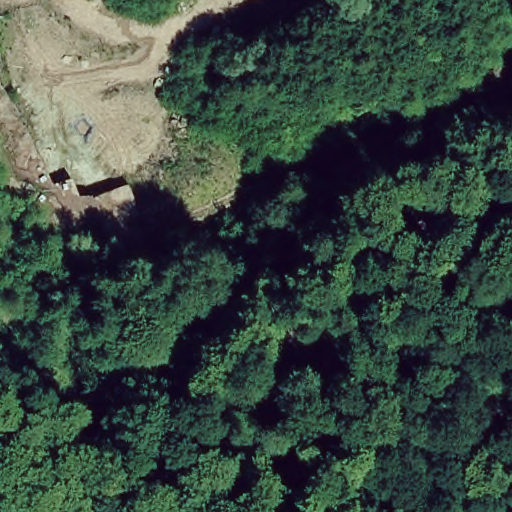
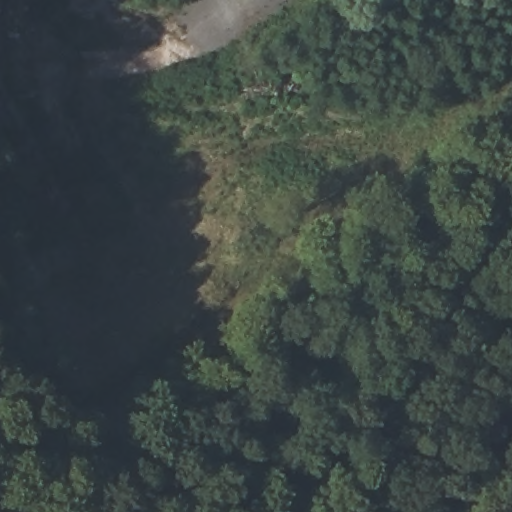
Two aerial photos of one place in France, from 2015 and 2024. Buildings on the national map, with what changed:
[]

